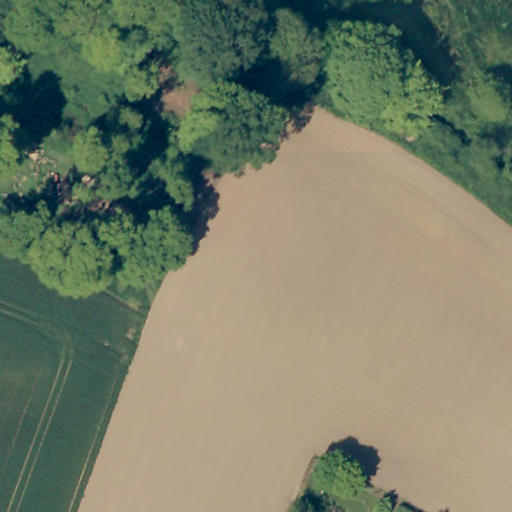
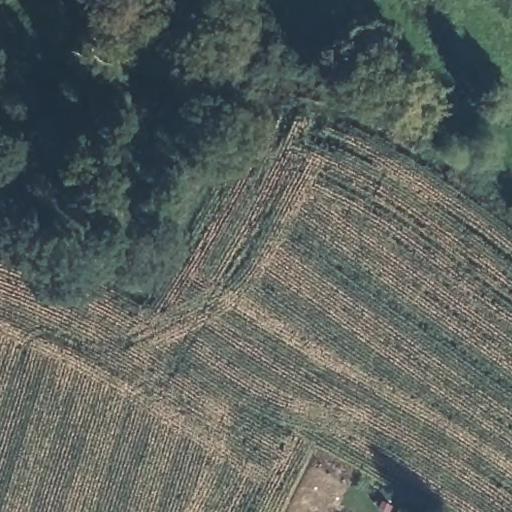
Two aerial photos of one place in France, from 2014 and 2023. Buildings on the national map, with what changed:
[]

